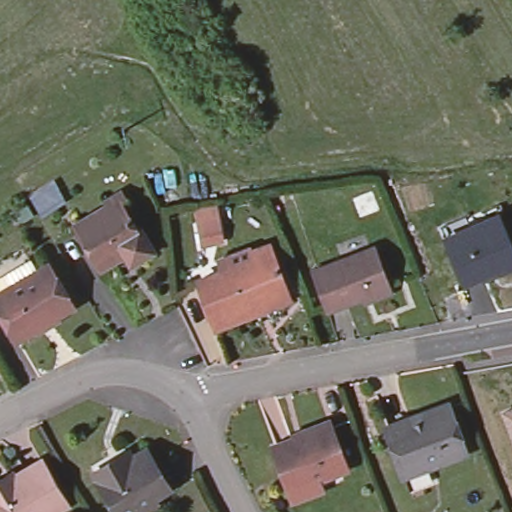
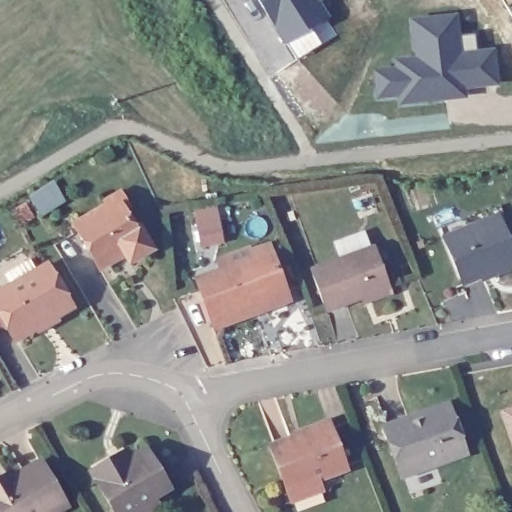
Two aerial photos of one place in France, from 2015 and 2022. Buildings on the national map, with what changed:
new [(283,43),(256,0),(313,0),(323,17),(283,43)]
new [(443,98),(399,103),(399,94),(376,96),(374,72),(396,70),(394,61),(416,59),(412,21),(452,16),(454,35),(473,33),(476,53),(489,51),(493,82),(461,86),(462,96),(443,98)]
unchanged [(96,269),(71,225),(104,206),(102,202),(116,193),(125,208),(121,210),(133,230),(137,228),(149,250),(127,263),(122,254),(114,259),(96,269)]
unchanged [(463,282),(440,227),(466,216),(469,226),(479,221),(477,216),(496,208),(512,247),(512,265),(500,271),(494,269),(463,282)]
unchanged [(363,302),(361,296),(326,309),(311,267),(343,255),(371,245),(374,244),(389,285),(392,291),(363,302)]
unchanged [(251,315),(211,325),(198,277),(233,268),(230,256),(251,250),(253,255),(273,250),(285,298),(287,306),(251,315)]
unchanged [(53,320),(53,318),(38,327),(39,328),(16,342),(0,313),(0,276),(10,270),(19,285),(48,268),(71,310),(53,320)]
unchanged [(399,459),(391,439),(387,428),(409,420),(448,405),(466,453),(409,475),(405,476),(399,459)]
unchanged [(503,410),(512,407),(512,434),(503,410)]
unchanged [(291,500),(287,489),(271,444),(303,433),(302,429),(328,420),(345,467),(317,478),(321,489),(291,500)]
unchanged [(129,512),(112,512),(86,467),(90,465),(88,460),(118,443),(120,447),(125,455),(141,446),(163,482),(146,492),(151,500),(129,512)]
unchanged [(0,478),(11,472),(14,477),(39,463),(64,505),(53,512),(0,512),(0,478)]

